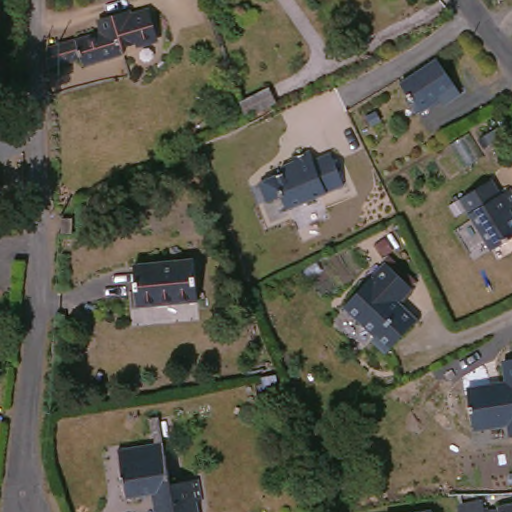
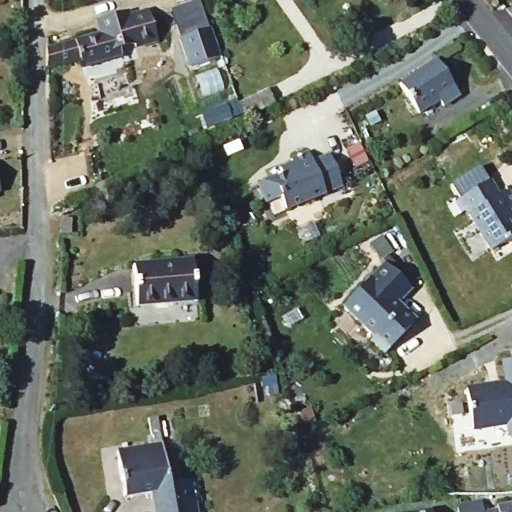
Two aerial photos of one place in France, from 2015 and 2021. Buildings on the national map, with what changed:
new [(201,0),(222,57),(192,67),(172,9),(201,0)]
unchanged [(84,42),(103,36),(99,24),(129,15),(130,20),(149,15),(158,44),(137,49),(136,46),(122,50),(124,58),(83,69),(81,62),(47,72),(47,66),(47,53),(84,42)]
unchanged [(437,55),(461,91),(445,102),(441,95),(420,109),(400,79),(437,55)]
unchanged [(234,123),(229,107),(257,95),(264,110),(234,123)]
unchanged [(257,179),(282,169),(279,163),(293,158),(291,154),(309,147),(312,156),(330,149),(344,183),(309,196),(304,184),(265,199),(257,179)]
unchanged [(12,150),(14,159),(5,162),(3,153),(12,150)]
unchanged [(504,195),(512,208),(512,211),(506,216),(512,226),(512,243),(491,257),(458,207),(487,187),(496,200),(504,195)]
unchanged [(60,249),(59,239),(69,238),(71,248),(60,249)]
unchanged [(128,272),(185,268),(189,307),(137,312),(133,312),(132,304),(128,272)]
unchanged [(404,334),(375,359),(363,344),(367,340),(338,307),(384,268),(409,297),(394,310),(410,329),(404,334)]
unchanged [(509,437),(507,424),(474,429),(468,387),(503,381),(501,362),(512,361),(512,436),(509,437)]
unchanged [(259,396),(257,384),(266,383),(271,382),(274,394),(259,396)]
unchanged [(119,506),(116,486),(111,460),(149,454),(147,446),(143,447),(139,425),(151,423),(162,486),(164,499),(146,502),(119,506)]
unchanged [(164,499),(162,486),(189,483),(194,512),(147,512),(146,502),(164,499)]
unchanged [(454,508),(479,508),(479,512),(454,512),(454,508)]
unchanged [(512,510),(512,512),(503,512),(512,510)]

